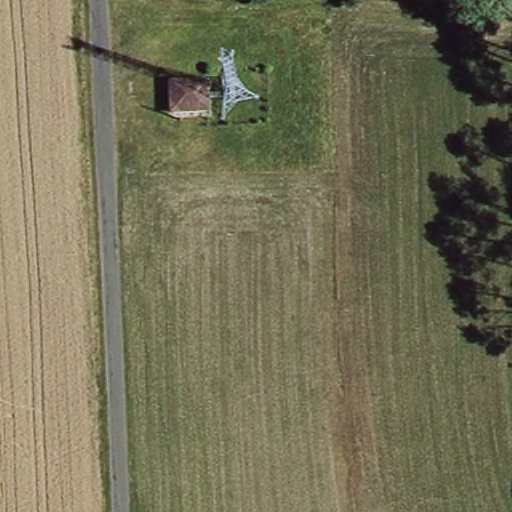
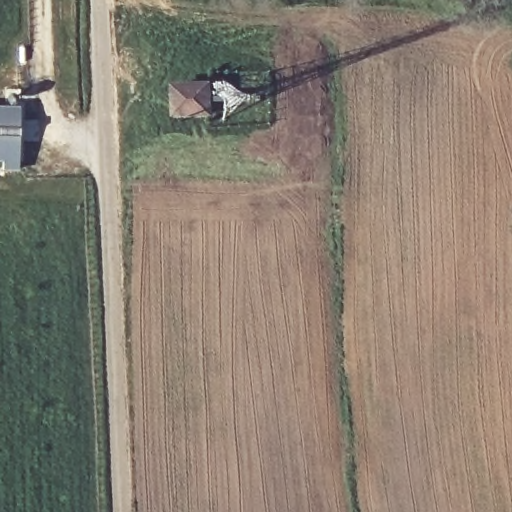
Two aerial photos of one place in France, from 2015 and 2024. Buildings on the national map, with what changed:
unchanged [(212,87),(212,114),(176,114),(175,87),(212,87)]
new [(4,170),(3,159),(0,158),(0,104),(20,104),(19,171),(4,170)]

